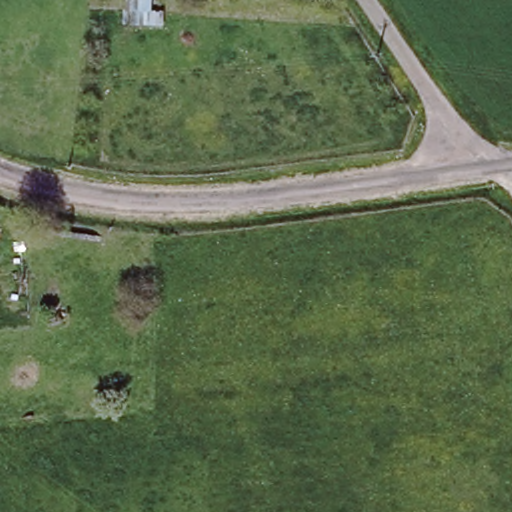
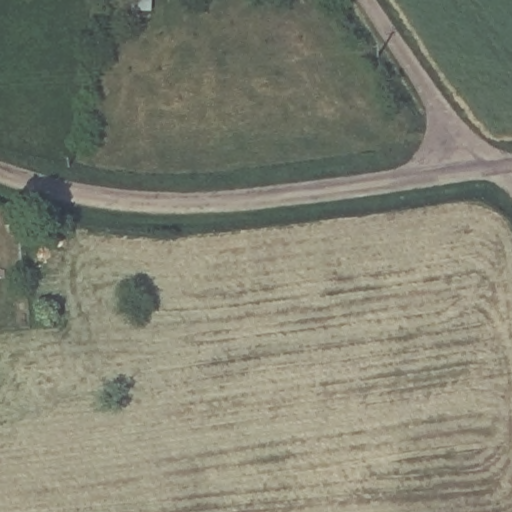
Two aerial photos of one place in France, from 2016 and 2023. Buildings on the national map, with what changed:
unchanged [(125,20),(126,0),(164,0),(162,22),(125,20)]

